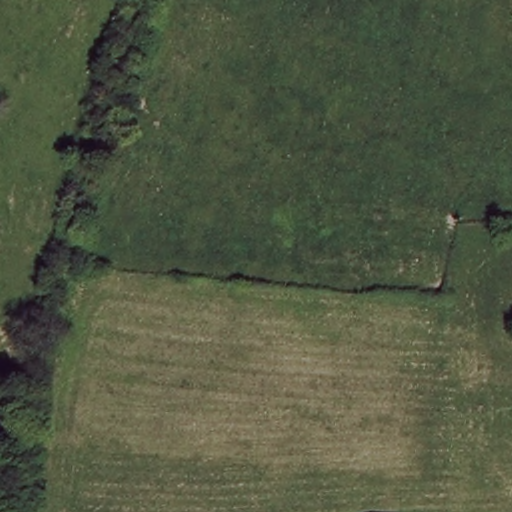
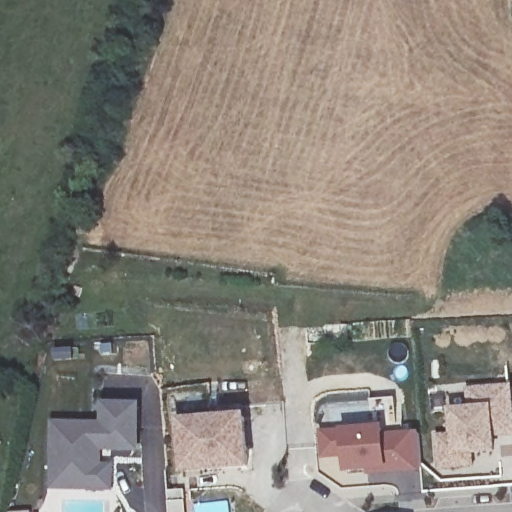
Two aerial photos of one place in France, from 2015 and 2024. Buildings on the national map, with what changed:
new [(449,409),(468,408),(468,389),(512,387),(512,439),(497,441),(497,456),(475,456),(476,469),(441,472),(437,436),(452,437),(449,409)]
new [(141,404),(139,452),(102,451),(102,466),(113,466),(113,492),(49,491),(52,421),(100,422),(101,402),(141,404)]
new [(239,420),(242,475),(166,479),(165,424),(239,420)]
new [(378,427),(378,436),(415,437),(415,475),(331,475),(332,460),(316,460),(315,427),(378,427)]

